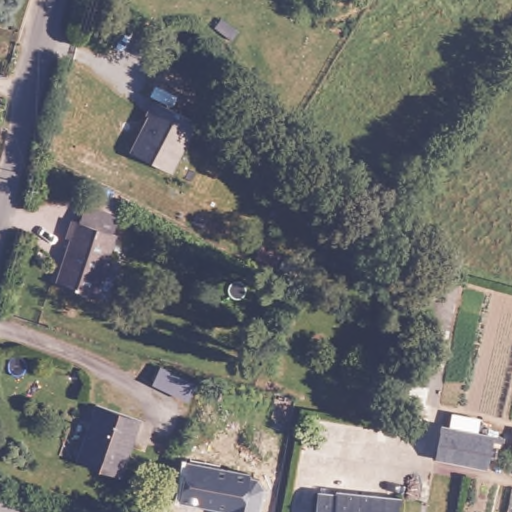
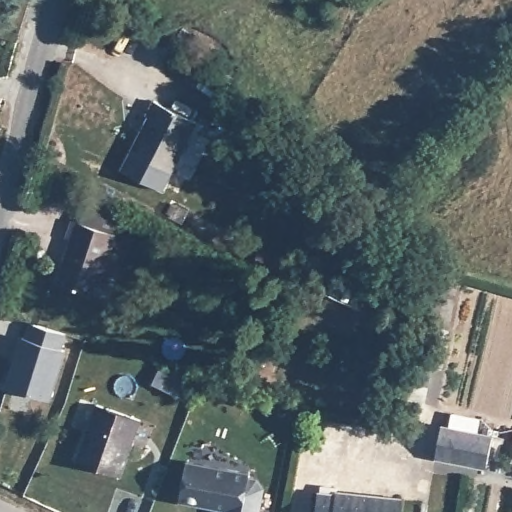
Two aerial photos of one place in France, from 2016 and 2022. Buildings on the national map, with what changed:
unchanged [(313,0),(331,0),(326,9),(313,0)]
unchanged [(149,116),(146,115),(154,101),(197,122),(171,172),(131,152),(149,116)]
unchanged [(51,293),(66,249),(61,247),(67,230),(74,232),(81,214),(114,225),(108,244),(111,245),(90,307),(51,293)]
unchanged [(437,360),(428,357),(419,393),(401,389),(421,306),(428,281),(430,272),(448,276),(433,334),(443,336),(437,360)]
new [(49,400),(5,387),(21,336),(25,337),(29,322),(66,333),(62,349),(65,350),(49,400)]
unchanged [(153,385),(162,367),(194,382),(185,400),(153,385)]
unchanged [(77,461),(97,404),(140,420),(120,476),(77,461)]
unchanged [(439,427),(442,414),(470,420),(468,432),(439,427)]
unchanged [(431,427),(473,435),(493,438),(489,460),(478,458),(476,468),(425,458),(431,427)]
unchanged [(186,462),(248,471),(262,487),(257,512),(224,512),(177,502),(186,462)]
unchanged [(331,495),(331,492),(398,499),(397,512),(311,512),(313,492),(331,495)]

